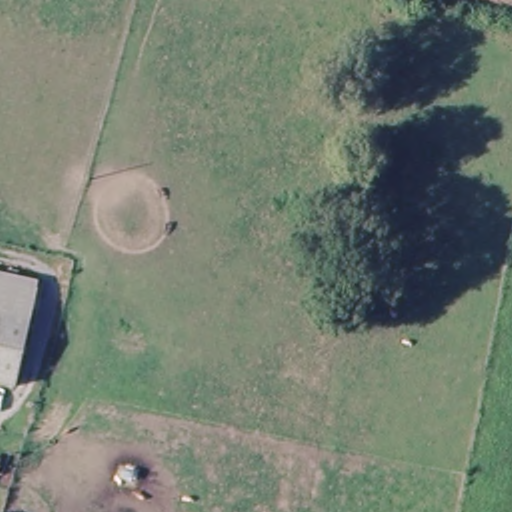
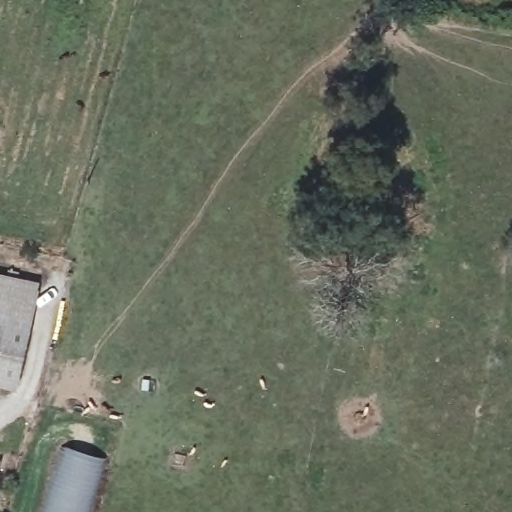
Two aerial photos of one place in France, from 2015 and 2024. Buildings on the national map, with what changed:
unchanged [(21,359),(0,354),(0,273),(38,281),(21,359)]
unchanged [(16,385),(0,382),(0,354),(21,359),(16,385)]
new [(46,476),(59,444),(106,458),(90,512),(36,512),(46,476)]
unchanged [(0,465),(0,461),(1,461),(0,465)]

